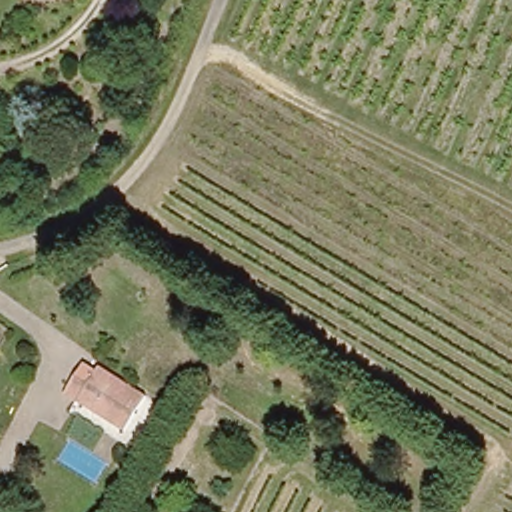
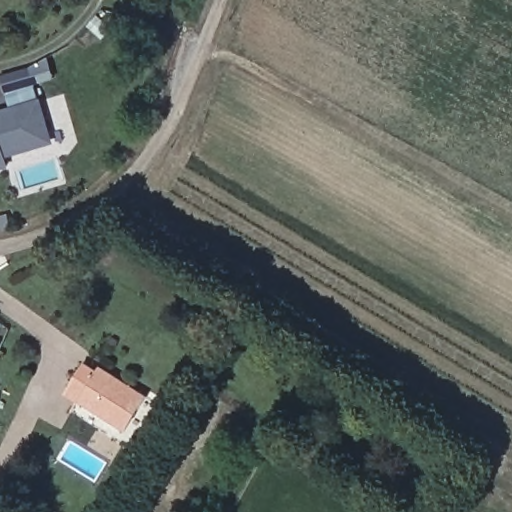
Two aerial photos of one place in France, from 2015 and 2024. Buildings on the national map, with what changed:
new [(43,99),(56,145),(8,159),(10,168),(0,171),(0,111),(12,108),(8,92),(5,92),(1,76),(33,68),(38,85),(36,86),(40,100),(43,99)]
unchanged [(87,361),(99,369),(103,363),(145,394),(123,427),(80,399),(85,392),(72,382),(87,361)]

